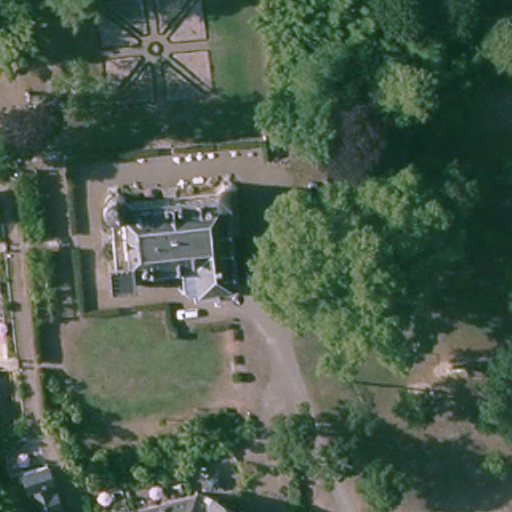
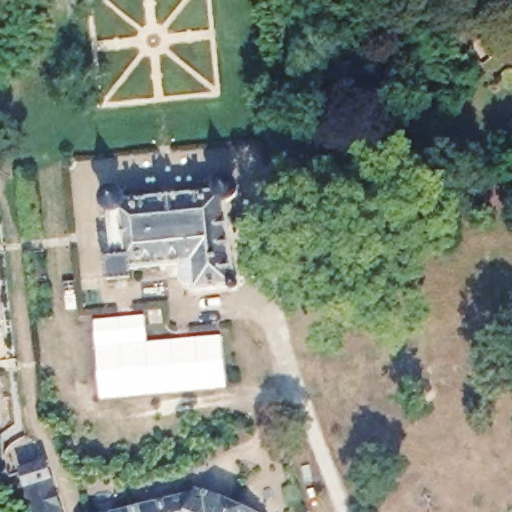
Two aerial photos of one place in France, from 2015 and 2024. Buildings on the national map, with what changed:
unchanged [(210,293),(209,286),(195,287),(193,267),(144,274),(144,285),(122,287),(120,270),(125,269),(116,215),(112,212),(112,206),(115,201),(121,199),(126,200),(130,204),(130,207),(224,195),(225,189),(227,185),(233,184),(239,185),(241,190),(242,195),(240,199),(236,203),(249,288),(210,293)]
new [(145,314),(147,341),(220,334),(225,387),(97,400),(91,320),(145,314)]
unchanged [(44,463),(61,512),(35,512),(21,471),(44,463)]
unchanged [(195,490),(263,512),(112,512),(191,494),(195,490)]

